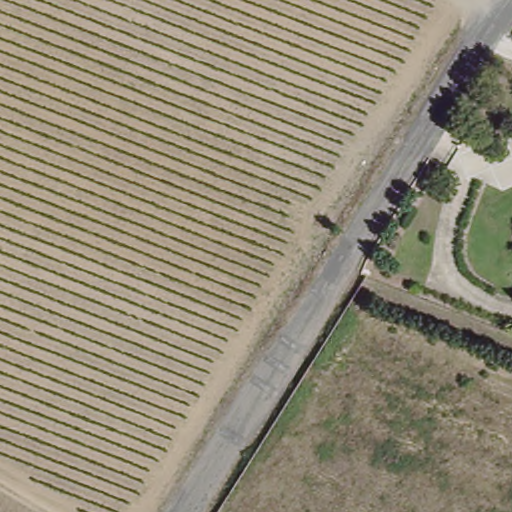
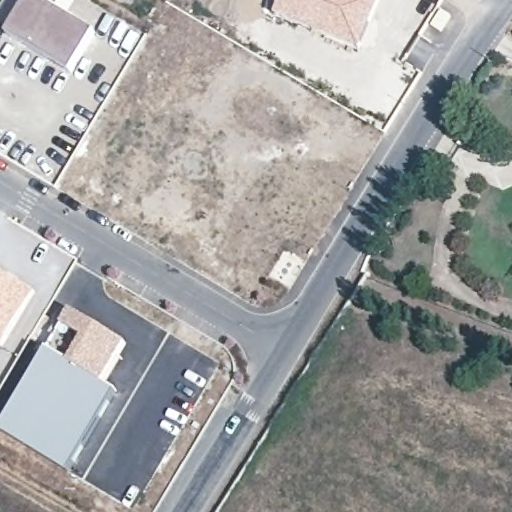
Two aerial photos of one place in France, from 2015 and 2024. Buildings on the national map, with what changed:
new [(45,0),(97,31),(71,75),(5,35),(27,0),(45,0)]
new [(379,0),(360,50),(273,15),(279,0),(379,0)]
new [(1,350),(0,349),(0,271),(35,292),(1,350)]
new [(70,308),(127,343),(105,383),(68,361),(81,340),(60,326),(70,308)]
new [(68,361),(105,383),(115,390),(66,471),(0,432),(0,425),(47,348),(68,361)]

